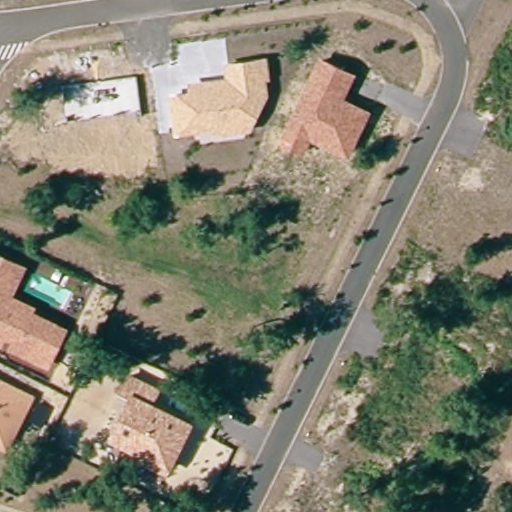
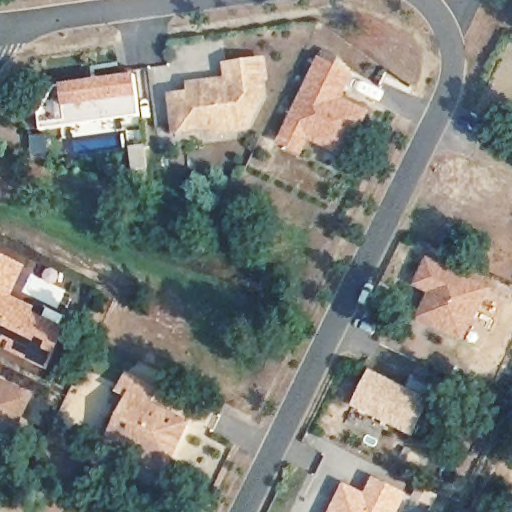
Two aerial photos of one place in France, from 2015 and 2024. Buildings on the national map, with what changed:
unchanged [(170,94),(190,92),(188,81),(225,78),(224,63),(269,56),(272,79),(267,80),(269,94),(252,131),(212,136),(211,131),(175,136),(170,94)]
unchanged [(319,56),(357,73),(346,99),(371,111),(350,160),(310,141),(303,156),(278,144),(319,56)]
new [(43,130),(40,115),(56,86),(63,85),(62,83),(136,73),(139,96),(141,115),(43,130)]
unchanged [(16,296),(37,306),(34,312),(69,328),(50,370),(0,346),(0,254),(28,267),(16,296)]
new [(416,320),(429,294),(414,287),(428,257),(491,288),(464,342),(416,320)]
new [(373,365),(407,382),(414,367),(439,379),(415,427),(356,398),(373,365)]
unchanged [(193,423),(168,476),(138,463),(141,455),(109,439),(128,398),(116,392),(126,371),(161,388),(154,404),(193,423)]
unchanged [(8,453),(0,449),(0,376),(38,395),(8,453)]
new [(355,475),(376,486),(384,469),(413,484),(405,500),(401,499),(394,512),(336,512),(341,502),(355,475)]

